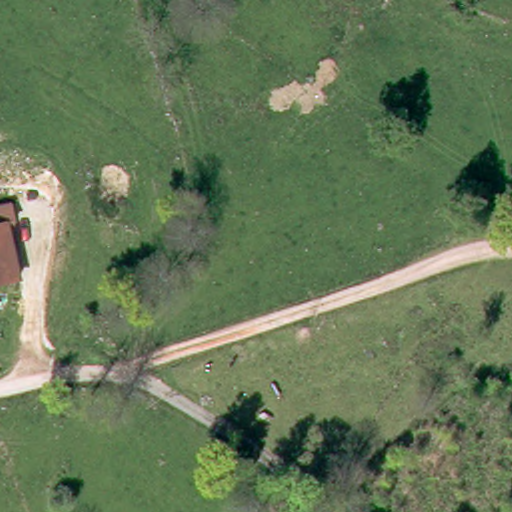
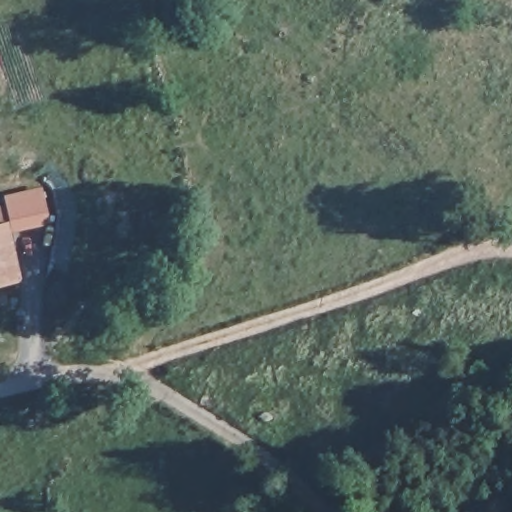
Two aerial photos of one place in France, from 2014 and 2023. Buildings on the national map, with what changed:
new [(12,202),(6,204),(4,194),(42,185),(50,221),(17,228),(12,202)]
unchanged [(17,228),(10,230),(24,288),(0,294),(0,206),(12,202),(17,228)]

